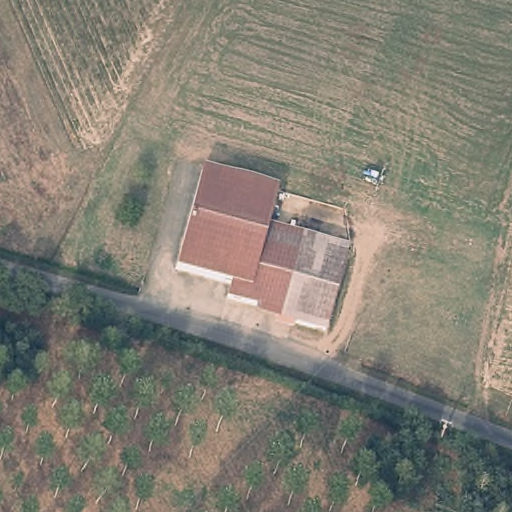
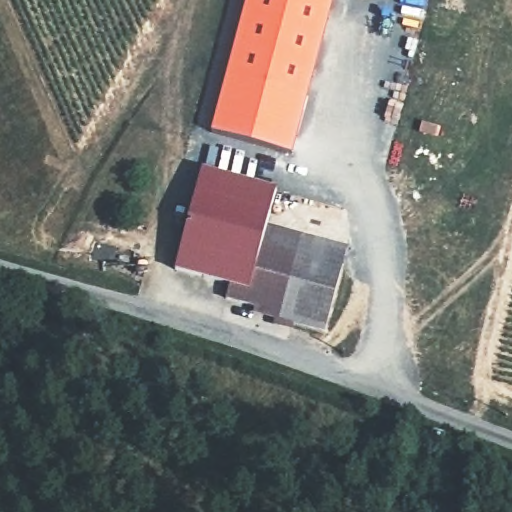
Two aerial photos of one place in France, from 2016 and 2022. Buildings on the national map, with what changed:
new [(210,132),(245,0),(332,0),(292,154),(210,132)]
unchanged [(342,266),(340,275),(293,262),(232,244),(218,282),(176,270),(176,268),(201,173),(203,173),(276,192),(267,227),(342,249),(347,251),(342,266)]
unchanged [(232,244),(293,262),(279,313),(277,312),(227,298),(230,286),(218,282),(232,244)]
unchanged [(277,312),(279,313),(293,262),(340,275),(325,332),(276,319),(277,312)]

